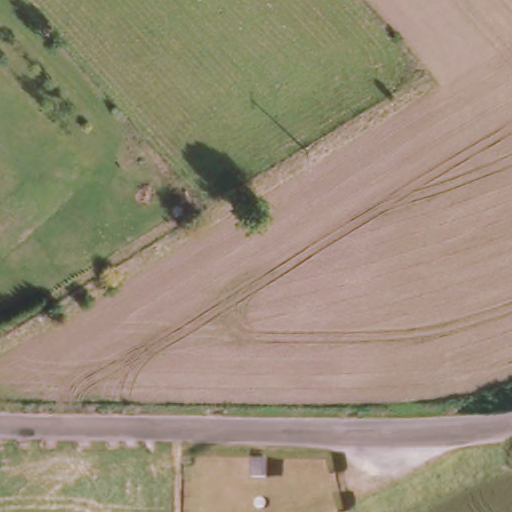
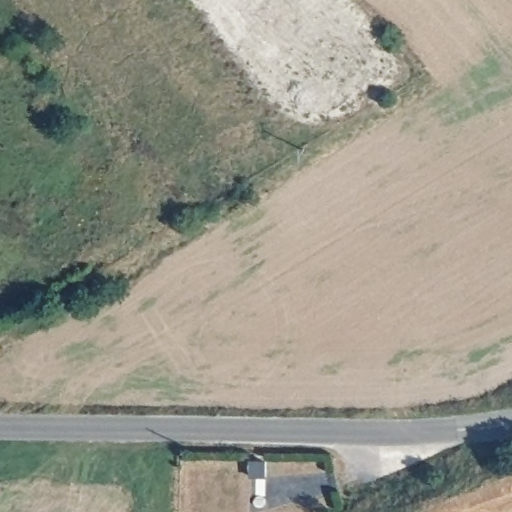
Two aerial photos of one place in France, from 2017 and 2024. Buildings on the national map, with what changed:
unchanged [(268,456),(268,477),(245,477),(246,457),(268,456)]

